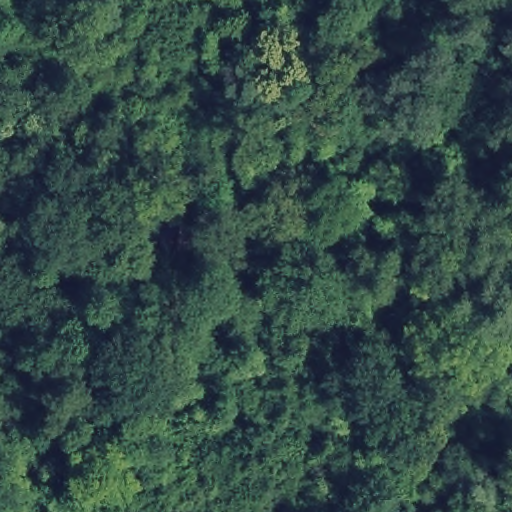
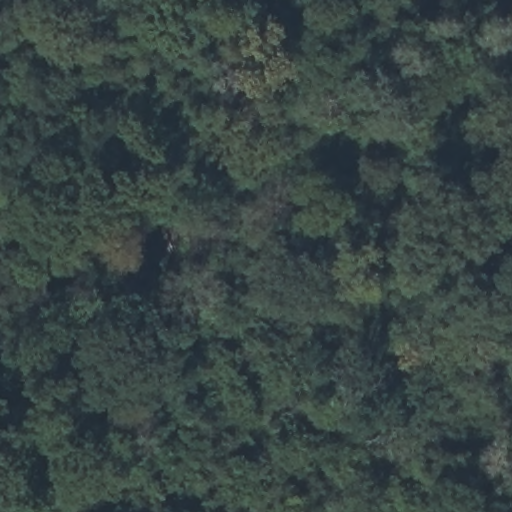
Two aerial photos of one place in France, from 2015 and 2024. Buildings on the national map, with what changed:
[]

